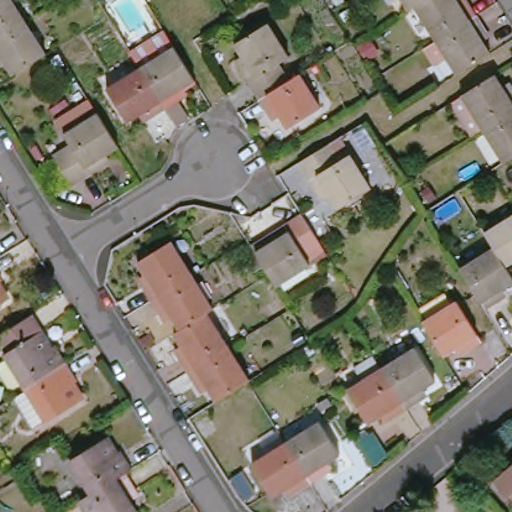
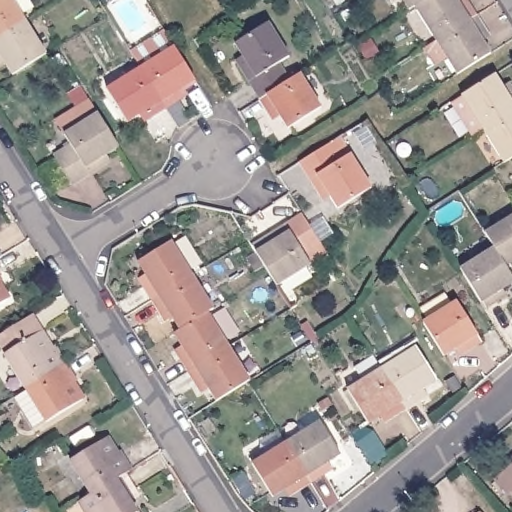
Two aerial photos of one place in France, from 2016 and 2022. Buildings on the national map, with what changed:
unchanged [(0,36),(0,0),(12,0),(25,20),(0,36)]
unchanged [(409,10),(402,0),(426,0),(416,6),(409,10)]
unchanged [(460,0),(467,0),(477,15),(437,41),(416,6),(426,0),(457,0),(458,1),(460,0)]
unchanged [(457,74),(446,55),(435,61),(427,47),(437,41),(477,15),(487,31),(479,36),(490,53),(457,74)]
unchanged [(46,54),(13,75),(1,57),(0,58),(0,36),(25,20),(46,54)]
unchanged [(266,100),(244,65),(251,61),(240,43),(272,23),(293,57),(284,62),(294,81),(266,100)]
unchanged [(141,69),(174,47),(196,81),(178,90),(182,96),(166,108),(141,69)]
unchanged [(166,108),(148,119),(144,112),(128,123),(107,89),(141,69),(166,108)]
unchanged [(483,129),(462,95),(496,74),(504,88),(512,85),(512,86),(512,111),(483,129)]
unchanged [(294,81),(304,75),(324,107),(292,127),(281,111),(276,115),(266,100),(294,81)]
unchanged [(108,157),(112,162),(78,184),(60,155),(76,144),(70,134),(61,121),(95,101),(103,114),(124,147),(108,157)]
unchanged [(512,111),(512,158),(504,162),(483,129),(512,111)]
unchanged [(333,139),(344,156),(354,150),(374,182),(342,203),(331,186),(324,189),(304,157),(333,139)]
unchanged [(494,247),(486,234),(512,216),(512,262),(506,266),(494,247)]
unchanged [(272,275),(257,250),(274,240),(289,231),(308,219),(326,247),(308,261),(313,269),(281,289),(272,275)]
unchanged [(153,302),(141,283),(148,278),(139,261),(171,241),(193,275),(153,302)]
unchanged [(461,268),(494,247),(506,266),(512,275),(512,282),(499,289),(503,295),(485,308),(461,268)]
unchanged [(193,275),(214,309),(208,313),(181,330),(171,313),(163,317),(153,302),(193,275)]
unchanged [(0,281),(0,277),(2,280),(0,281)]
unchanged [(0,301),(0,286),(7,297),(0,301)]
unchanged [(423,322),(457,300),(481,341),(463,352),(458,346),(444,355),(423,322)]
unchanged [(181,330),(208,313),(229,348),(189,372),(177,353),(183,349),(174,334),(181,330)]
unchanged [(8,351),(0,341),(0,335),(32,314),(43,329),(40,331),(51,347),(56,346),(66,363),(27,388),(5,353),(8,351)]
unchanged [(229,348),(251,381),(249,382),(216,402),(206,385),(199,389),(189,372),(229,348)]
unchanged [(381,369),(416,348),(435,380),(419,389),(423,396),(407,408),(381,369)]
unchanged [(407,408),(389,418),(384,411),(369,422),(348,388),(364,379),(356,365),(373,354),(381,369),(407,408)]
unchanged [(66,363),(78,380),(74,383),(83,398),(47,420),(45,418),(33,425),(15,396),(27,388),(66,363)]
unchanged [(286,442),(319,421),(341,455),(324,464),(328,471),(311,482),(286,442)]
unchanged [(122,480),(93,498),(71,465),(107,442),(118,457),(120,455),(132,473),(122,480)]
unchanged [(311,482),(293,492),(289,486),(273,497),(252,463),(286,442),(311,482)]
unchanged [(505,497),(492,481),(512,464),(512,494),(511,492),(505,497)]
unchanged [(93,498),(122,480),(133,497),(128,500),(137,512),(84,512),(80,506),(93,498)]

